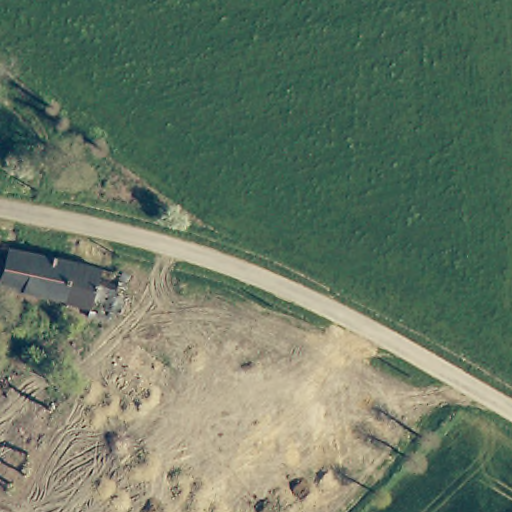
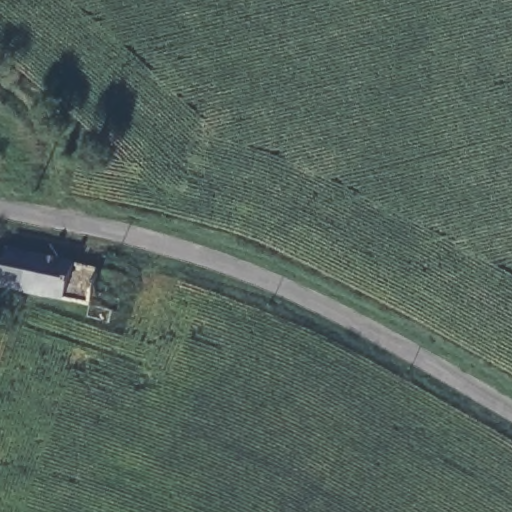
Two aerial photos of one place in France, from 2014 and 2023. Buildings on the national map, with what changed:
unchanged [(65,303),(0,287),(0,278),(8,251),(74,268),(100,275),(130,282),(122,314),(114,312),(109,330),(87,323),(91,310),(65,303)]

